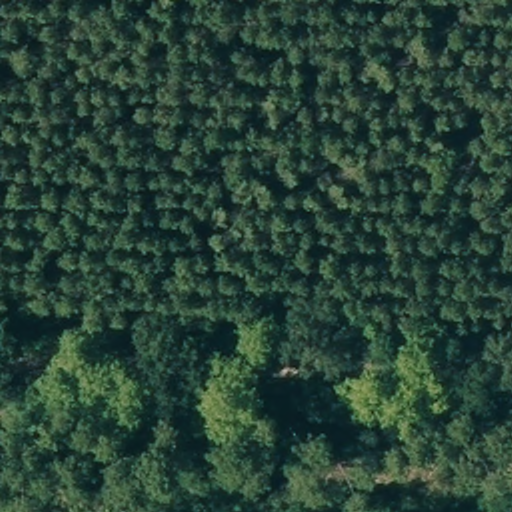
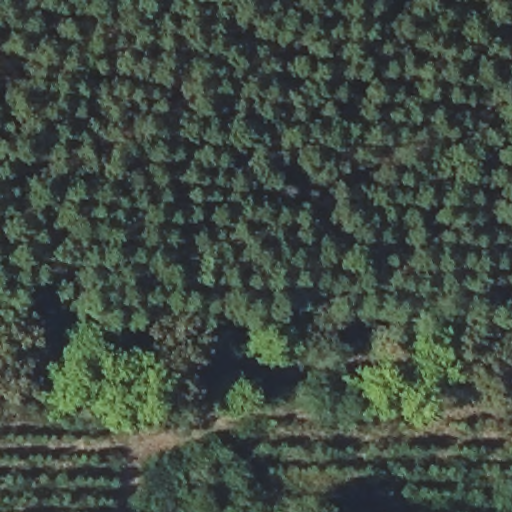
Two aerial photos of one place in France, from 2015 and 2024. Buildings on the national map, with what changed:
[]

